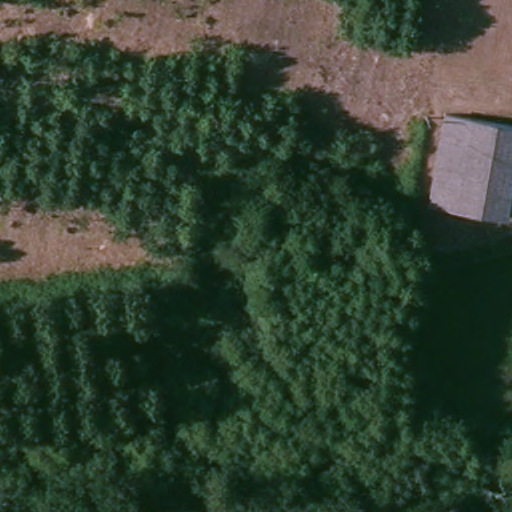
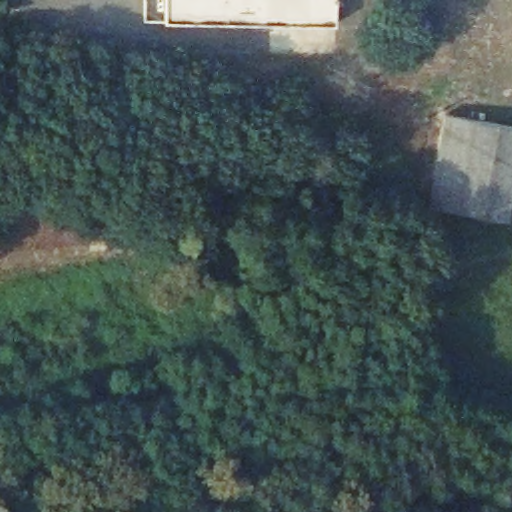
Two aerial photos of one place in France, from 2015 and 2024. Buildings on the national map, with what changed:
new [(166,19),(166,0),(335,0),(336,24),(166,19)]
unchanged [(512,205),(510,215),(434,202),(446,107),(512,121),(512,205)]

